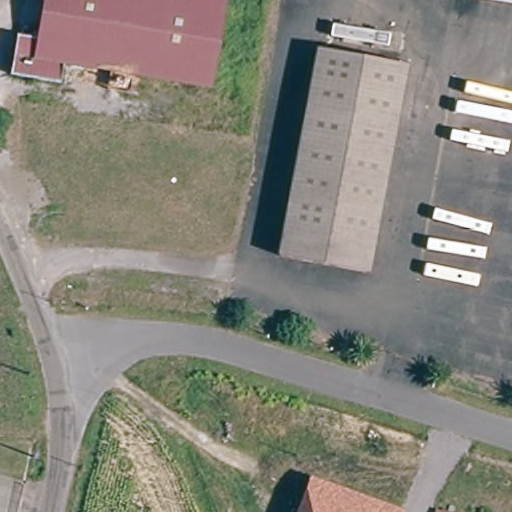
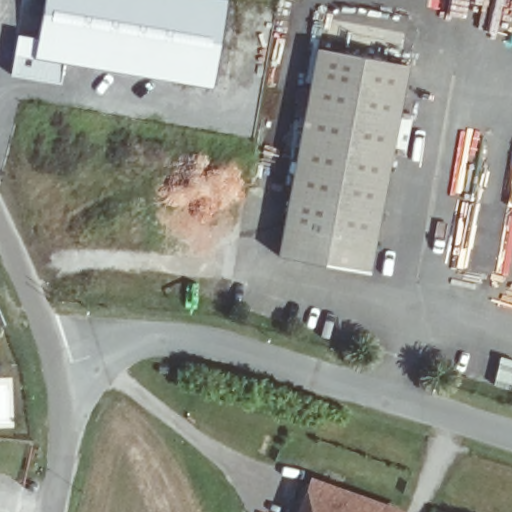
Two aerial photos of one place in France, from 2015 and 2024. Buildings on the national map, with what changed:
unchanged [(208,94),(66,70),(63,90),(6,80),(13,41),(32,44),(39,0),(200,0),(223,4),(208,94)]
unchanged [(369,267),(309,257),(280,252),(289,197),(314,44),(361,51),(369,52),(403,58),(369,267)]
unchanged [(301,512),(313,478),(407,507),(405,512),(301,512)]
unchanged [(453,512),(437,512),(438,508),(453,512)]

